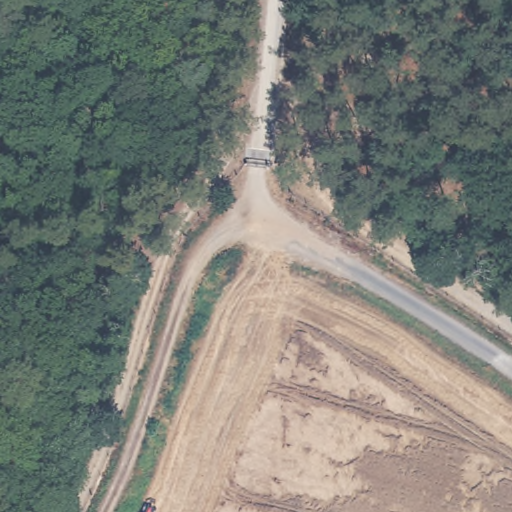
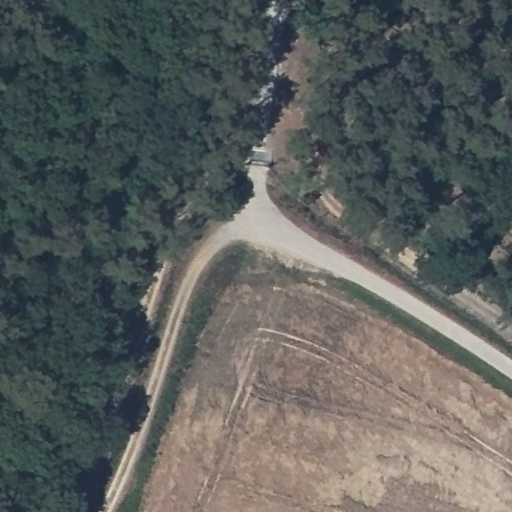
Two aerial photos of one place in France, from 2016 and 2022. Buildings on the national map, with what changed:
[]

